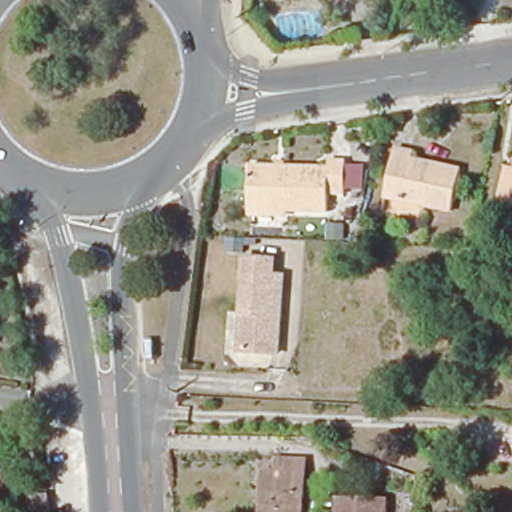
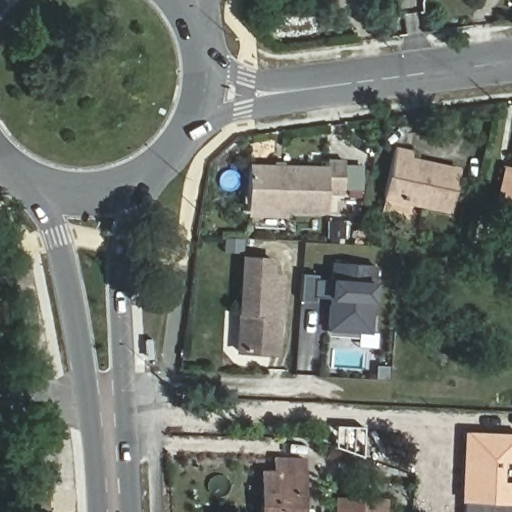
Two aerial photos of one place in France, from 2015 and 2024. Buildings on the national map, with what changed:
unchanged [(462,169),(452,212),(384,197),(396,148),(414,152),(412,158),(462,169)]
unchanged [(330,172),(331,165),(344,166),(343,199),(327,199),(327,218),(251,216),(252,170),(330,172)]
unchanged [(512,168),(512,205),(498,202),(507,167),(512,168)]
unchanged [(274,261),(273,277),(283,277),(278,354),(240,352),(247,259),(274,261)]
new [(376,304),(371,304),(369,331),(327,330),(329,285),(333,284),(335,262),(380,265),(376,304)]
new [(462,512),(462,502),(460,502),(463,431),(512,434),(512,512),(462,512)]
unchanged [(282,482),(282,469),(310,470),(308,512),(268,512),(270,483),(282,482)]
unchanged [(33,512),(31,497),(47,495),(49,512),(33,512)]
unchanged [(387,500),(386,512),(337,512),(338,498),(387,500)]

